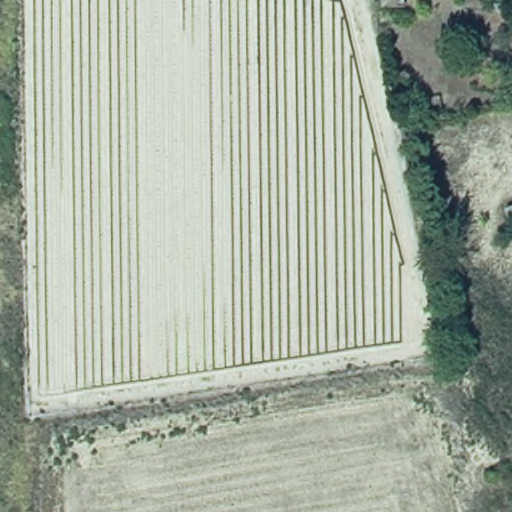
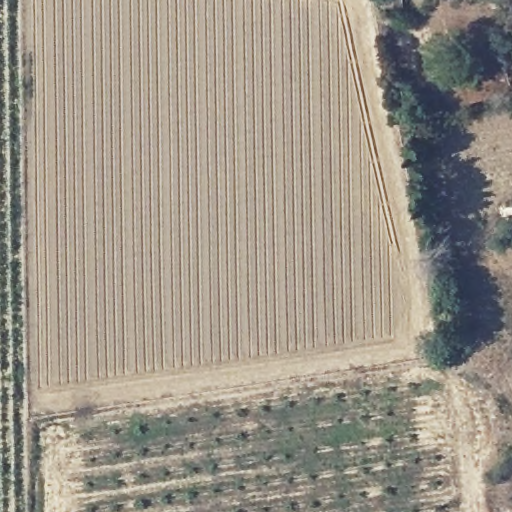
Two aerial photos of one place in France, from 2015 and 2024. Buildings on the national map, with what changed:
unchanged [(406,17),(378,21),(378,0),(404,0),(406,17)]
unchanged [(506,201),(512,201),(512,224),(505,224),(506,201)]

